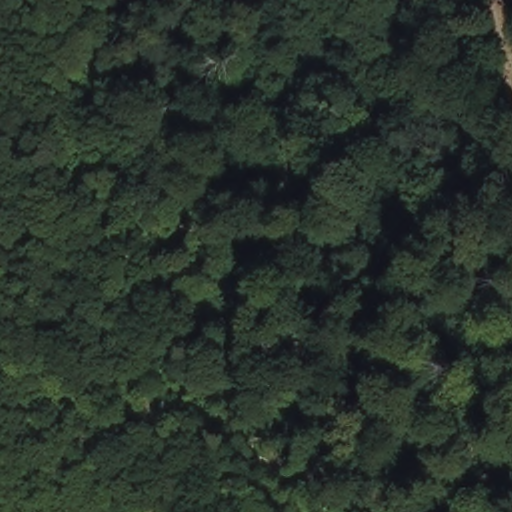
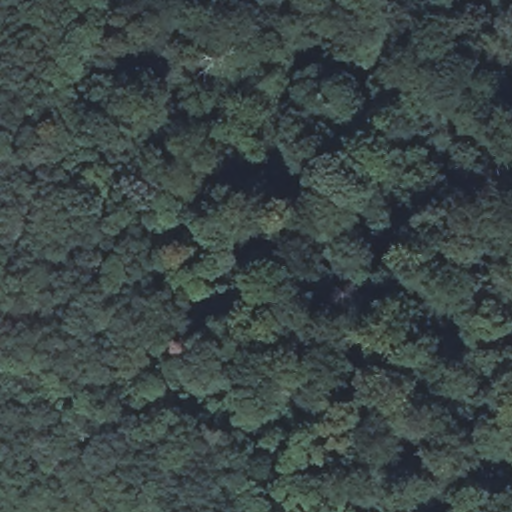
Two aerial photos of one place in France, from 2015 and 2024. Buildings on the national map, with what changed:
[]

